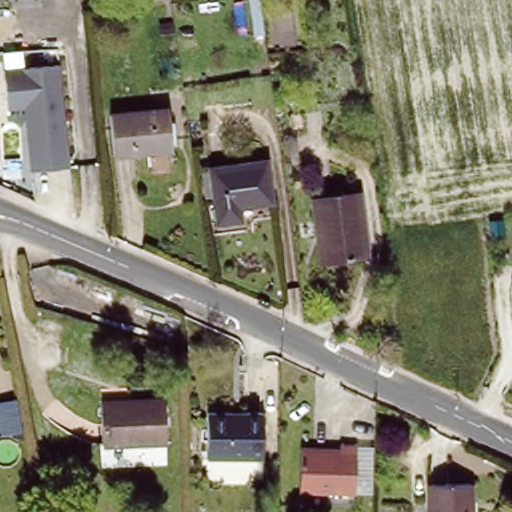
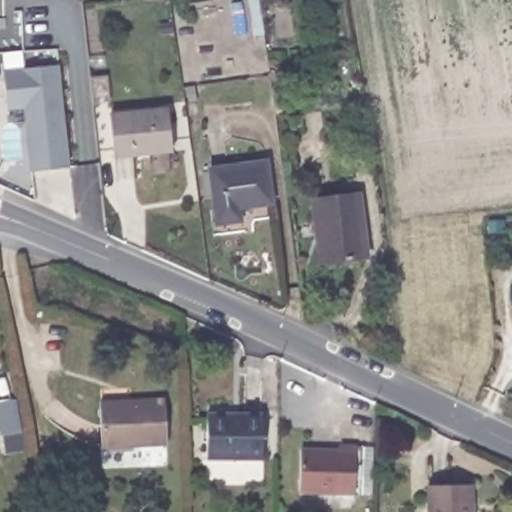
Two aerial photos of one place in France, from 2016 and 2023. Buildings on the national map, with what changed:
unchanged [(65,170),(30,174),(22,110),(7,111),(2,72),(53,67),(63,147),(65,170)]
unchanged [(114,156),(109,115),(166,109),(172,149),(114,156)]
unchanged [(238,207),(240,219),(217,222),(209,168),(265,161),(270,202),(238,207)]
unchanged [(315,232),(310,198),(354,192),(364,257),(326,262),(320,263),(315,232)]
unchanged [(510,285),(512,284),(512,314),(510,285)]
unchanged [(104,445),(101,401),(164,398),(167,442),(104,445)]
unchanged [(209,454),(209,408),(266,410),(266,455),(209,454)]
unchanged [(296,492),(297,449),(337,450),(337,445),(353,446),(351,493),(296,492)]
unchanged [(478,512),(432,512),(431,486),(477,480),(478,512)]

